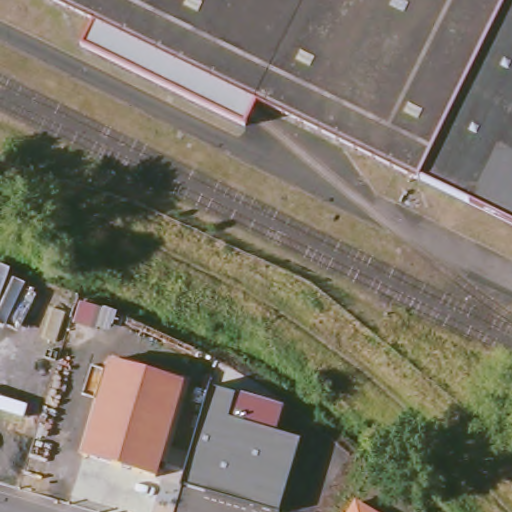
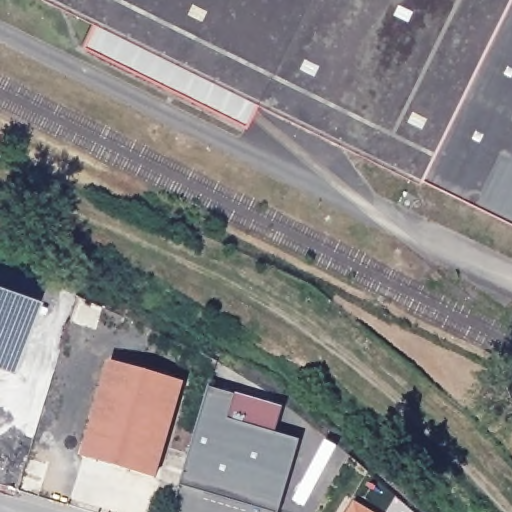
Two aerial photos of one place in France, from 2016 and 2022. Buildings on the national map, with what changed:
unchanged [(418,177),(415,177),(252,96),(243,111),(236,124),(75,45),(88,15),(58,0),(512,0),(512,224),(418,177)]
unchanged [(112,362),(187,384),(159,479),(84,458),(112,362)]
unchanged [(211,390),(238,397),(232,421),(302,443),(281,512),(267,512),(183,489),(211,390)]
unchanged [(355,501),(374,512),(348,512),(355,501)]

